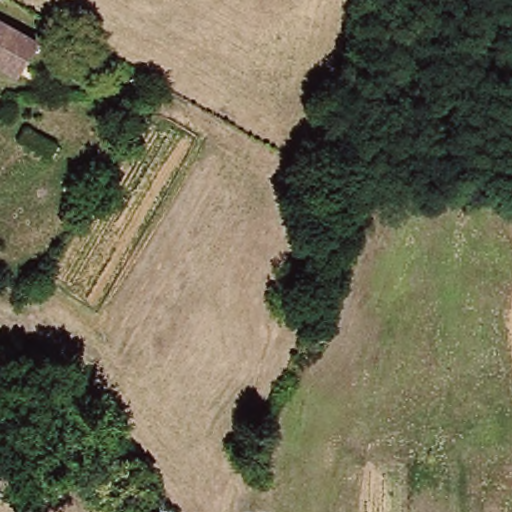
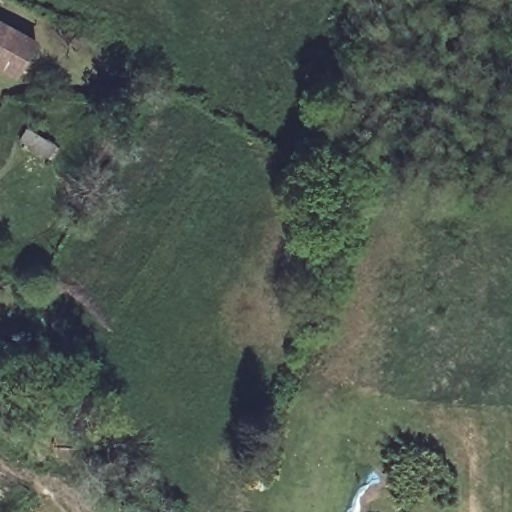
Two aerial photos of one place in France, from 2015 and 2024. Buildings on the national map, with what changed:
unchanged [(15,79),(0,70),(0,26),(35,46),(15,79)]
unchanged [(55,149),(49,158),(23,143),(28,133),(55,149)]

